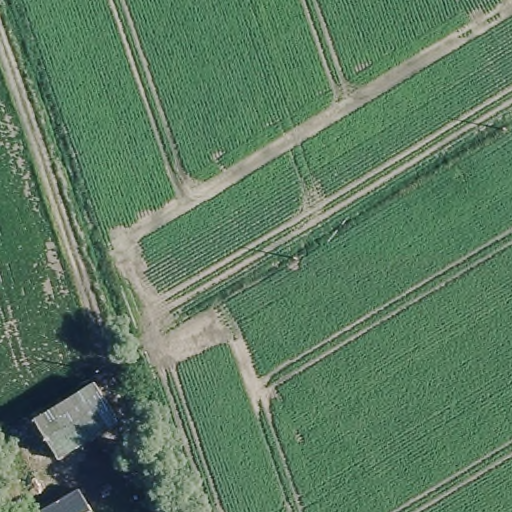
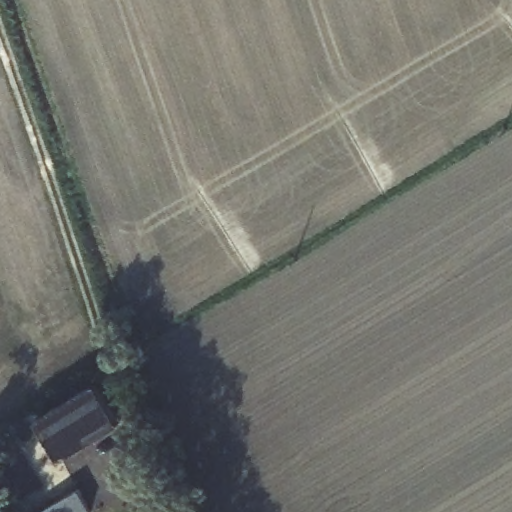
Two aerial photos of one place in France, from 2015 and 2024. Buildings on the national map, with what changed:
unchanged [(120,424),(104,435),(106,440),(64,465),(40,422),(100,387),(120,424)]
unchanged [(105,486),(117,507),(109,512),(58,512),(66,507),(60,495),(93,475),(100,489),(105,486)]

